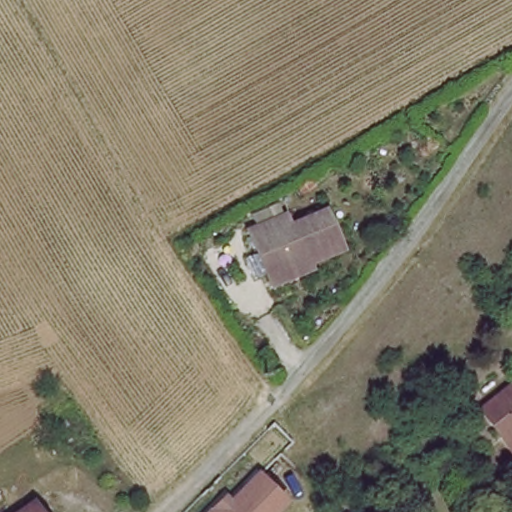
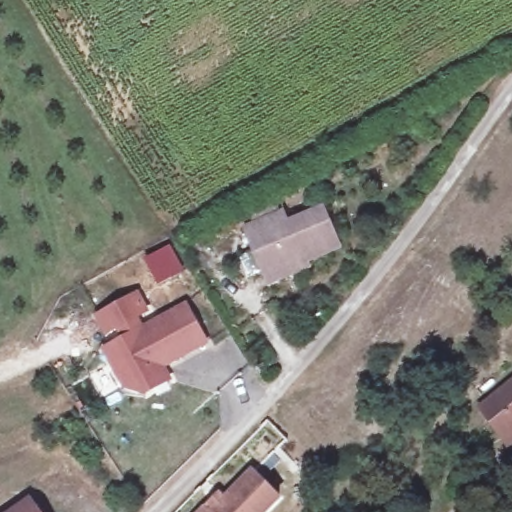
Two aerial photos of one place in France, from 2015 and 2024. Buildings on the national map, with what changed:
unchanged [(293,231),(323,216),(340,249),(307,266),(269,284),(243,239),(286,218),(293,231)]
new [(179,271),(158,284),(144,261),(167,248),(179,271)]
new [(108,344),(92,314),(138,290),(151,318),(185,300),(209,342),(164,368),(172,383),(150,395),(119,389),(98,349),(108,344)]
unchanged [(512,382),(512,459),(474,410),(512,382)]
unchanged [(281,504),(273,512),(205,512),(221,496),(226,502),(255,476),(281,504)]
unchanged [(28,502),(36,512),(14,512),(28,502)]

